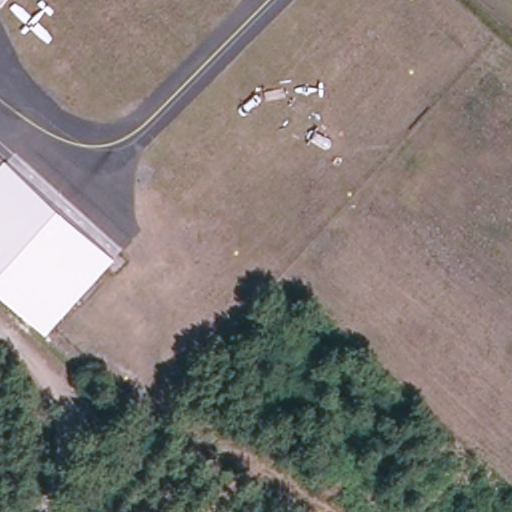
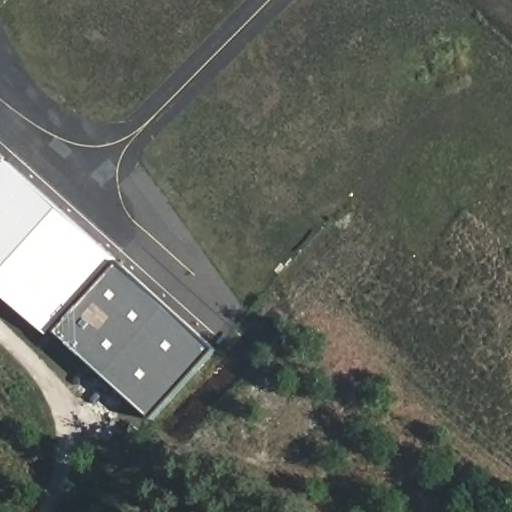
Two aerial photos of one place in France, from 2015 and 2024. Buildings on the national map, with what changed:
unchanged [(0,164),(0,155),(5,160),(0,164)]
unchanged [(116,260),(47,335),(0,293),(0,164),(5,160),(116,260)]
new [(116,260),(216,354),(150,426),(47,335),(116,260)]

